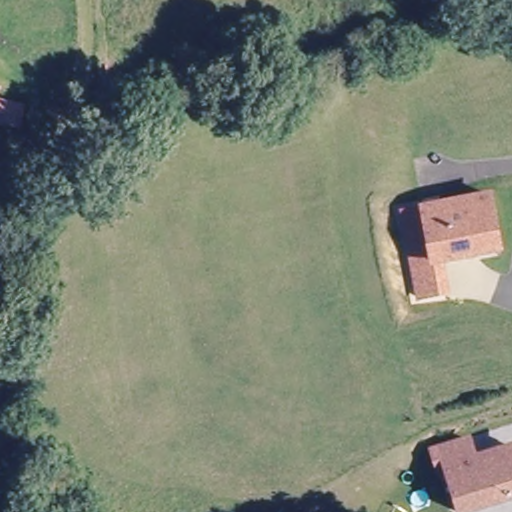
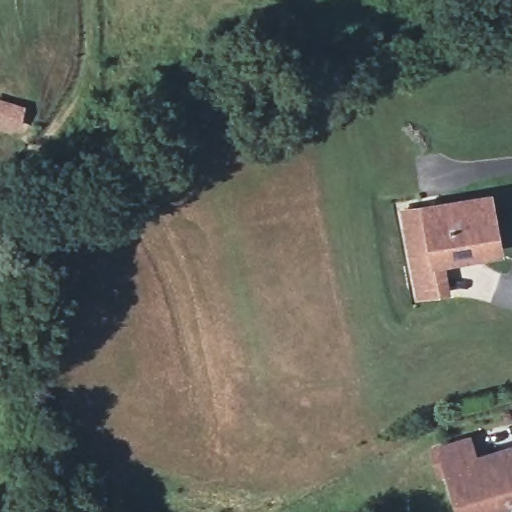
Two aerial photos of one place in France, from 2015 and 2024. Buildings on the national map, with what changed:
unchanged [(17,129),(0,125),(0,102),(25,106),(17,129)]
unchanged [(419,294),(414,263),(405,209),(488,196),(491,219),(496,250),(484,252),(441,259),(446,290),(419,294)]
unchanged [(512,500),(474,512),(465,512),(452,470),(445,473),(438,451),(474,440),(480,459),(512,449),(512,500)]

